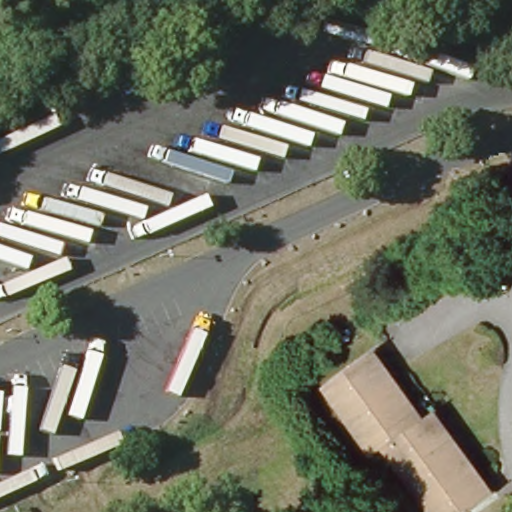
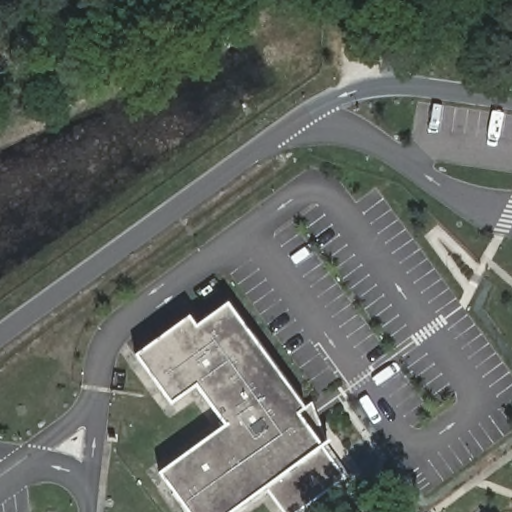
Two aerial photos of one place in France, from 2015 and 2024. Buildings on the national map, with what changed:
new [(296,512),(285,512),(267,488),(232,512),(190,512),(161,473),(226,426),(198,386),(172,404),(138,357),(191,317),(197,328),(229,304),(306,409),(312,404),(326,441),(349,474),(345,478),(296,512)]
demolished [(470,512),(428,512),(386,449),(374,458),(321,382),(376,346),(425,412),(437,404),(499,489),(470,512)]

